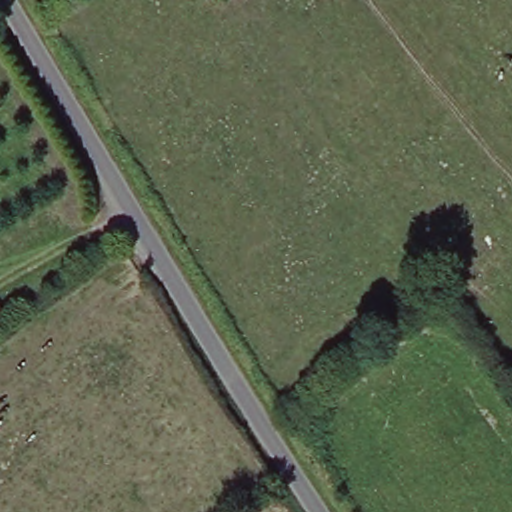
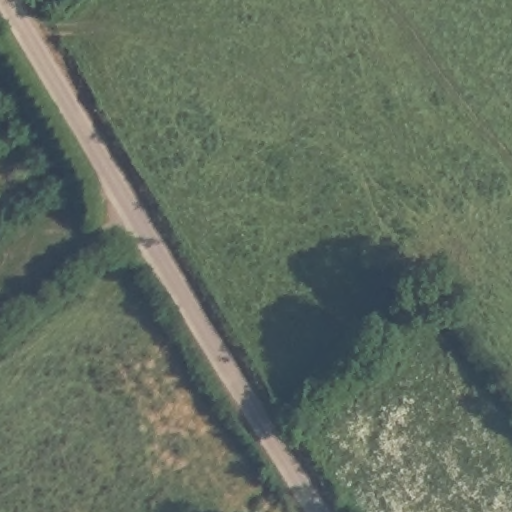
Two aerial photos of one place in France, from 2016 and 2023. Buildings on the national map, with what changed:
unchanged [(0,325),(0,312),(6,321),(0,325)]

